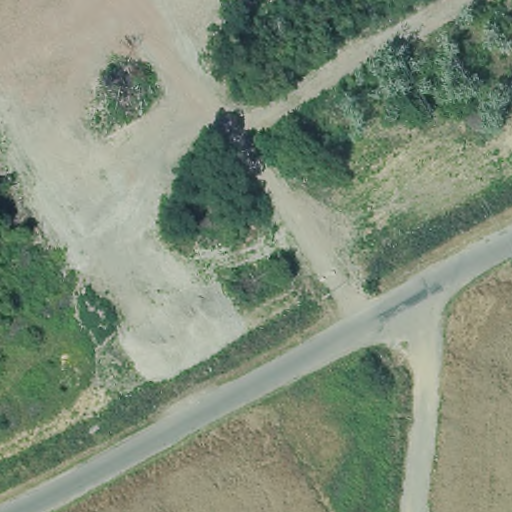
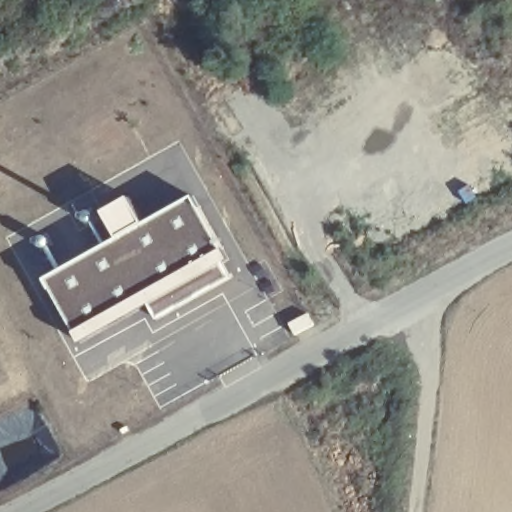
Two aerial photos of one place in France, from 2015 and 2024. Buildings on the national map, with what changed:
new [(186,195),(223,262),(71,346),(36,280),(186,195)]
demolished [(213,342),(219,353),(196,367),(191,356),(213,342)]
new [(155,384),(168,412),(131,430),(118,402),(155,384)]

